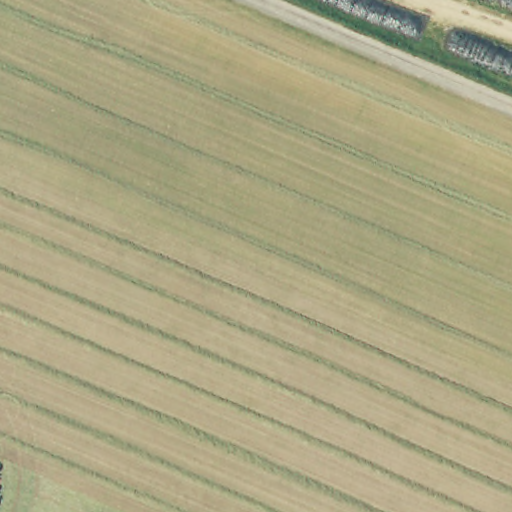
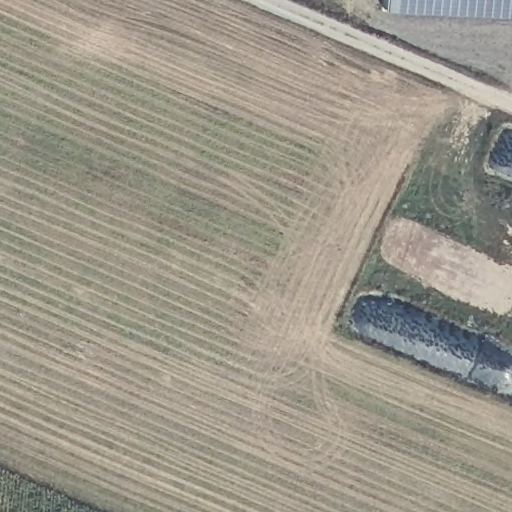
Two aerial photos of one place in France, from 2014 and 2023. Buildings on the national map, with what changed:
new [(382,12),(382,0),(512,0),(512,18),(382,12)]

